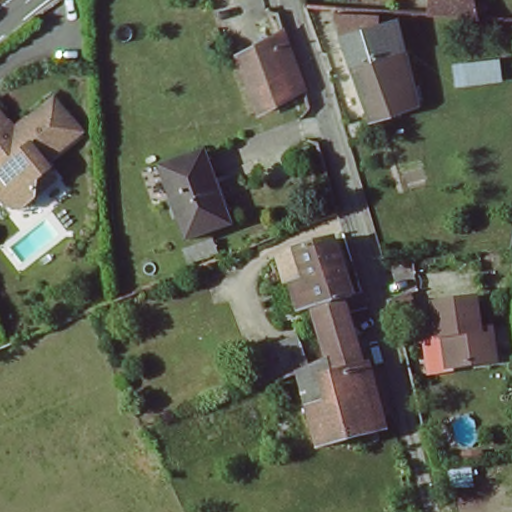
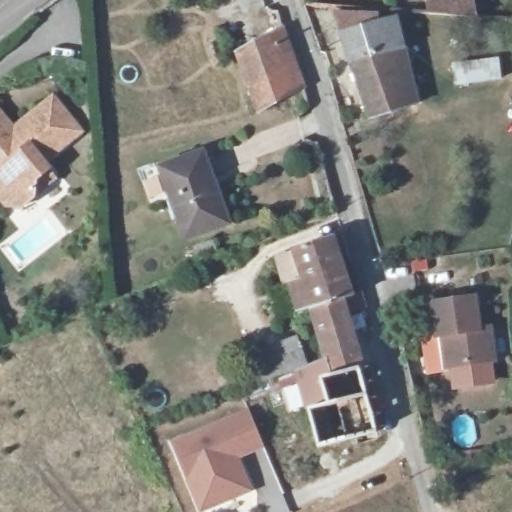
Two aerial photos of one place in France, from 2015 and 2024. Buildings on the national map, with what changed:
unchanged [(447,10),(435,9),(436,0),(480,0),(479,12),(447,10)]
unchanged [(403,108),(368,117),(333,12),(375,16),(378,26),(395,21),(417,105),(403,108)]
unchanged [(231,57),(276,32),(280,48),(296,88),(251,110),(231,57)]
unchanged [(52,91),(81,123),(45,155),(51,161),(52,162),(37,176),(38,177),(37,192),(25,201),(11,201),(1,189),(2,175),(1,174),(0,173),(0,109),(14,124),(52,91)]
unchanged [(228,226),(184,242),(156,167),(201,151),(228,226)]
unchanged [(298,319),(279,255),(329,236),(346,291),(357,288),(360,302),(345,306),(312,316),(298,319)]
unchanged [(434,332),(429,333),(425,301),(467,295),(471,326),(483,325),(487,357),(445,362),(437,363),(434,332)]
unchanged [(326,362),(312,316),(345,306),(363,366),(356,367),(374,427),(315,443),(295,373),(306,370),(326,362)]
unchanged [(295,373),(259,386),(249,357),(294,341),(306,370),(295,373)]
new [(249,412),(262,446),(237,456),(248,491),(221,502),(216,488),(196,496),(175,444),(249,412)]

